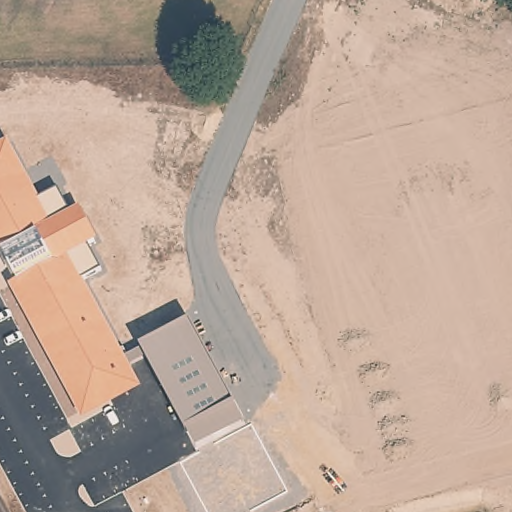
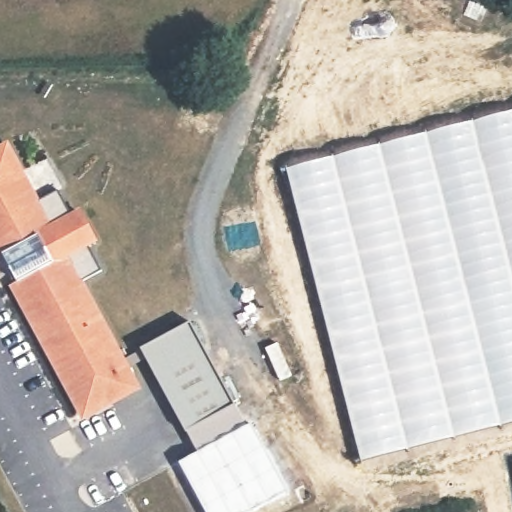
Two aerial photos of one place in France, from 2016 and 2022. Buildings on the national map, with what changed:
new [(512,110),(512,423),(360,461),(285,169),(512,110)]
unchanged [(17,280),(4,254),(0,256),(0,145),(9,140),(40,200),(58,191),(70,214),(81,210),(98,242),(86,249),(99,270),(81,280),(141,391),(81,420),(9,286),(17,280)]
unchanged [(140,348),(189,320),(234,403),(247,427),(253,424),(287,492),(250,512),(208,512),(180,460),(197,451),(185,430),(140,348)]

